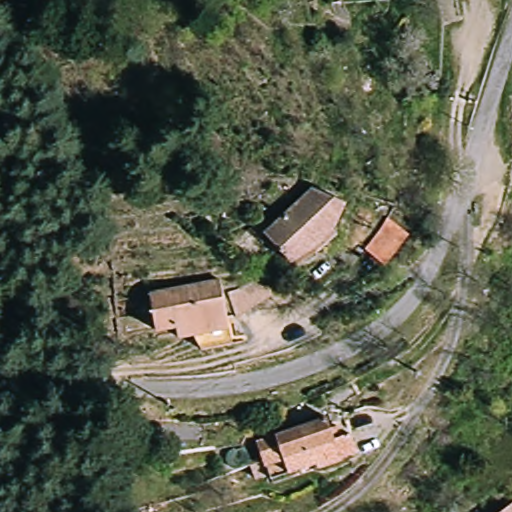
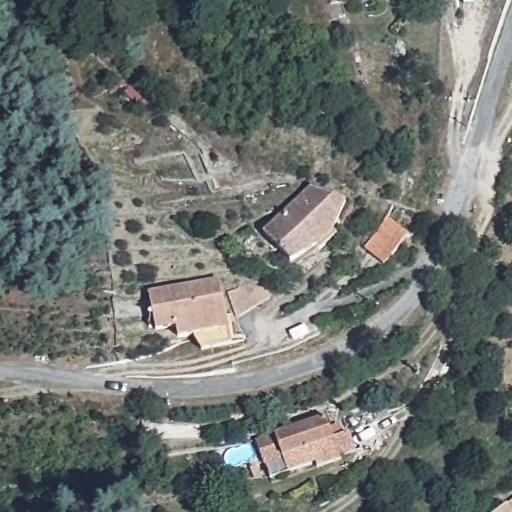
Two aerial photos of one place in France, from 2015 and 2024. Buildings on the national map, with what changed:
unchanged [(310,187),(345,205),(314,255),(287,261),(265,230),(310,187)]
unchanged [(377,215),(404,233),(385,268),(358,248),(377,215)]
unchanged [(223,281),(235,346),(201,350),(195,337),(177,340),(174,326),(155,329),(149,292),(223,281)]
unchanged [(345,433),(352,452),(337,457),(317,467),(314,461),(270,479),(255,442),(322,418),(330,438),(345,433)]
unchanged [(508,512),(512,509),(512,512),(508,512)]

